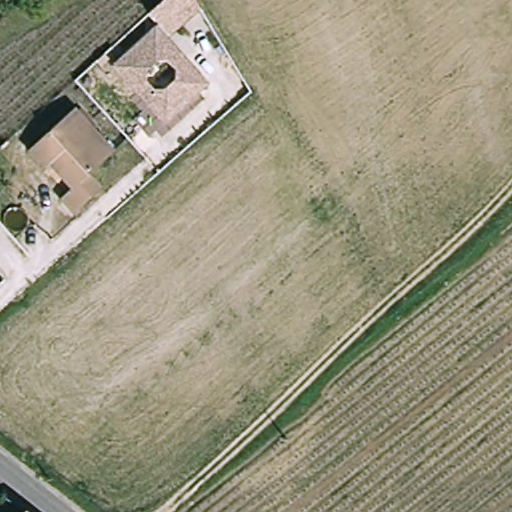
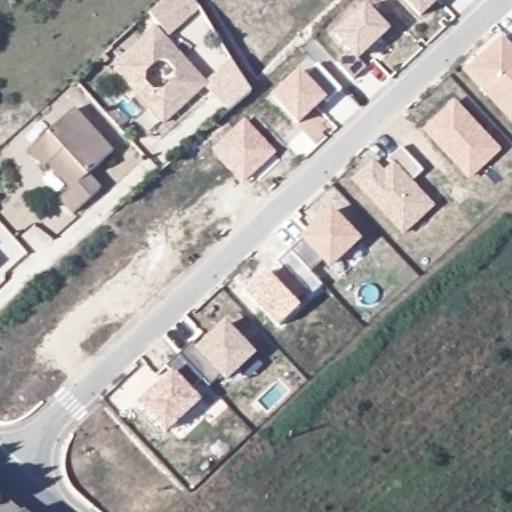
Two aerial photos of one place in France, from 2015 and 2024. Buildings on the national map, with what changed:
unchanged [(196,0),(199,6),(168,34),(149,12),(162,0),(196,0)]
new [(402,0),(441,0),(421,19),(402,0)]
new [(358,60),(367,67),(354,80),(339,64),(349,52),(334,35),(366,3),(391,29),(358,60)]
unchanged [(113,66),(155,27),(207,83),(165,122),(113,66)]
new [(512,123),(464,72),(503,35),(512,45),(512,123)]
new [(251,91),(227,113),(203,86),(207,83),(206,82),(231,60),(251,91)]
new [(305,76),(317,63),(343,88),(328,102),(326,100),(299,127),(269,96),(299,69),(305,76)]
new [(470,180),(423,130),(455,99),(503,151),(470,180)]
unchanged [(78,109),(118,152),(92,175),(104,189),(77,214),(63,199),(74,189),(53,165),(48,169),(33,151),(78,109)]
new [(276,152),(244,183),(213,149),(245,119),(276,152)]
new [(435,206),(403,237),(350,179),(373,158),(383,170),(392,162),(389,159),(402,146),(423,171),(412,180),(435,206)]
new [(321,260),(310,273),(320,283),(299,306),(279,328),(244,292),(266,271),(276,282),(287,271),(279,261),(301,239),(299,237),(331,207),(361,240),(329,269),(321,260)]
new [(210,385),(204,379),(192,389),(201,400),(164,435),(138,405),(172,372),(166,365),(192,343),(196,348),(226,321),(255,354),(225,382),(220,376),(210,385)]
unchanged [(0,502),(8,498),(25,512),(0,512),(0,502)]

